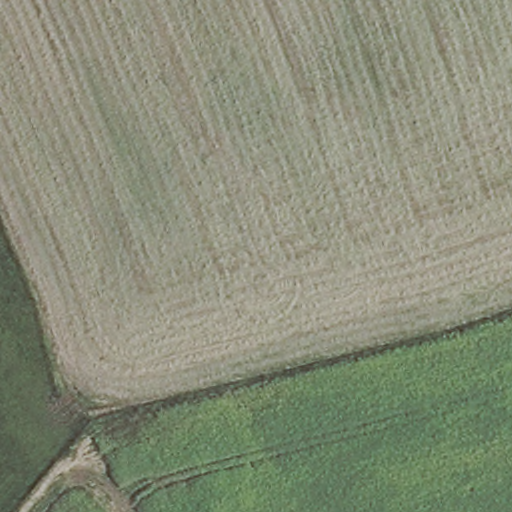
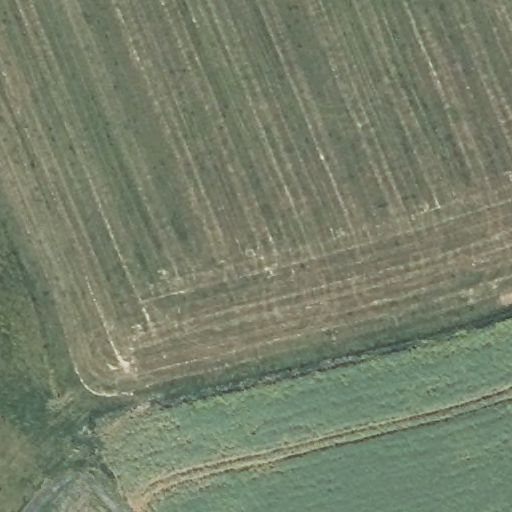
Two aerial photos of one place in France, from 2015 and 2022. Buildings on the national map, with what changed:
unchanged [(512,306),(505,308),(498,294),(512,290),(512,306)]

